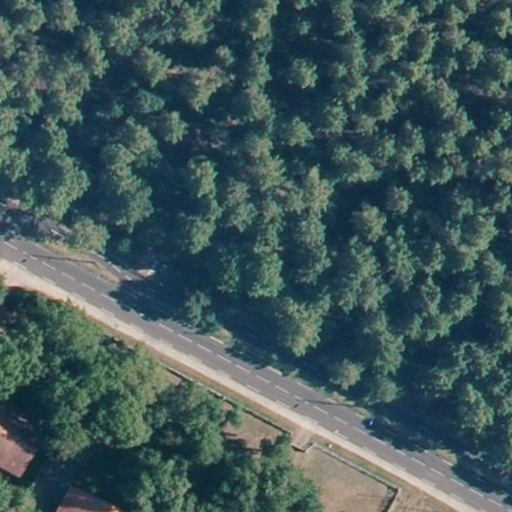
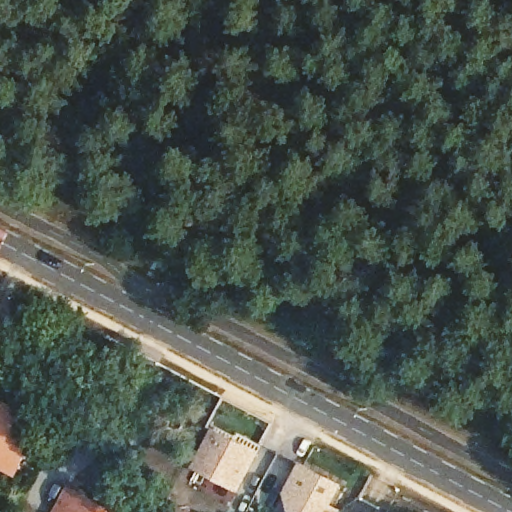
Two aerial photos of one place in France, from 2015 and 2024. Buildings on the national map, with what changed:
unchanged [(12,417),(36,430),(10,479),(0,474),(0,411),(12,417)]
new [(242,493),(194,467),(216,427),(263,453),(242,493)]
new [(332,512),(292,512),(281,506),(303,462),(346,484),(332,512)]
unchanged [(67,486),(114,512),(53,512),(67,486)]

